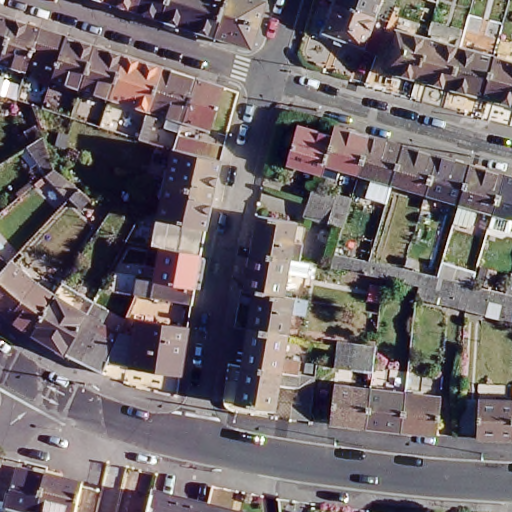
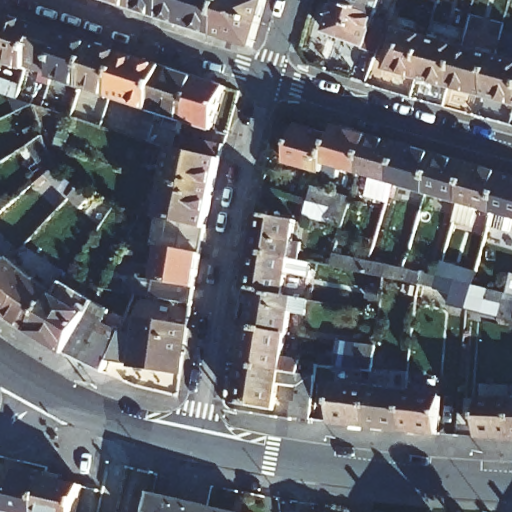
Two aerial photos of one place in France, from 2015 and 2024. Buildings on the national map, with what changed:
unchanged [(145,5),(128,0),(147,0),(145,5)]
unchanged [(147,0),(175,0),(170,14),(145,5),(147,0)]
unchanged [(175,0),(234,0),(223,31),(170,14),(175,0)]
unchanged [(234,0),(275,0),(262,44),(223,31),(234,0)]
unchanged [(375,6),(370,21),(384,26),(376,46),(362,40),(362,37),(325,23),(333,0),(358,0),(375,6)]
unchanged [(375,6),(358,0),(378,0),(375,6)]
unchanged [(0,47),(0,4),(15,9),(2,48),(0,47)]
unchanged [(27,59),(26,61),(0,52),(2,48),(15,9),(41,17),(27,59)]
unchanged [(50,75),(38,71),(41,63),(27,59),(41,17),(67,26),(50,75)]
unchanged [(380,60),(391,20),(422,28),(411,69),(380,60)]
unchanged [(82,79),(63,72),(60,81),(50,77),(50,75),(67,26),(96,35),(82,79)]
unchanged [(422,28),(455,37),(445,77),(411,69),(422,28)]
unchanged [(110,88),(82,79),(96,35),(125,45),(110,88)]
unchanged [(455,37),(489,46),(478,86),(445,77),(455,37)]
unchanged [(148,100),(110,88),(125,45),(162,57),(148,100)]
unchanged [(489,46),(512,53),(512,95),(478,86),(489,46)]
unchanged [(138,130),(148,100),(162,57),(196,69),(182,111),(179,122),(165,117),(168,107),(161,105),(160,110),(155,109),(146,132),(138,130)]
unchanged [(225,79),(211,121),(182,111),(196,69),(225,79)]
unchanged [(286,154),(297,117),(332,127),(322,164),(286,154)]
unchanged [(368,127),(357,165),(340,159),(336,169),(322,164),(332,127),(335,117),(368,127)]
unchanged [(157,208),(161,189),(160,188),(166,159),(168,160),(173,141),(177,127),(225,138),(221,152),(205,220),(157,208)]
unchanged [(368,127),(402,137),(391,175),(386,193),(366,187),(372,169),(357,165),(368,127)]
unchanged [(87,209),(75,199),(75,200),(51,177),(52,176),(33,147),(49,137),(55,155),(60,170),(84,190),(96,199),(87,209)]
unchanged [(435,147),(425,184),(391,175),(402,137),(435,147)]
unchanged [(470,157),(460,194),(425,184),(435,147),(470,157)]
unchanged [(503,166),(492,204),(477,199),(471,220),(453,215),(460,194),(470,157),(503,166)]
unchanged [(503,166),(512,169),(512,209),(492,204),(503,166)]
unchanged [(313,202),(317,187),(322,190),(341,195),(355,199),(346,229),(333,224),(309,216),(313,202)]
unchanged [(258,205),(296,212),(292,231),(301,234),(298,251),(285,250),(251,244),(258,205)]
unchanged [(205,220),(200,247),(160,239),(152,237),(157,208),(205,220)]
unchanged [(192,296),(136,286),(139,270),(154,273),(160,239),(200,247),(192,296)]
unchanged [(285,250),(298,251),(299,252),(310,254),(308,268),(287,265),(283,288),(255,283),(247,281),(245,281),(251,244),(285,250)]
unchanged [(7,255),(30,275),(50,291),(25,329),(2,311),(0,309),(0,263),(2,260),(7,255)]
unchanged [(504,320),(470,311),(420,299),(423,287),(405,282),(389,279),(382,277),(371,275),(339,268),(336,267),(338,255),(373,262),(408,270),(443,279),(460,283),(477,287),(493,291),(508,295),(512,284),(512,322),(504,320)]
unchanged [(0,263),(0,258),(2,260),(0,263)]
unchanged [(50,291),(59,279),(90,297),(60,350),(25,329),(50,291)]
unchanged [(302,305),(290,302),(286,326),(285,326),(249,320),(255,283),(283,288),(290,289),(305,291),(302,305)]
unchanged [(90,297),(102,305),(90,328),(106,335),(110,325),(115,328),(103,357),(98,369),(60,350),(90,297)]
unchanged [(176,372),(127,365),(127,362),(103,357),(115,328),(131,330),(134,315),(183,322),(176,372)]
unchanged [(285,326),(286,326),(282,350),(300,353),(298,367),(264,361),(242,358),(249,320),(285,326)]
unchanged [(362,371),(358,370),(340,368),(342,344),(351,345),(361,346),(380,348),(377,373),(374,372),(362,371)]
unchanged [(291,408),(292,392),(297,393),(298,381),(278,377),(273,402),(236,395),(242,358),(264,361),(298,367),(300,367),(315,370),(310,411),(291,408)]
unchanged [(366,417),(330,413),(333,377),(370,380),(366,417)]
unchanged [(401,421),(366,417),(370,380),(405,385),(401,421)]
unchanged [(441,388),(437,425),(401,421),(405,385),(441,388)]
unchanged [(476,428),(478,390),(512,392),(512,430),(476,428)]
unchanged [(31,512),(3,512),(5,502),(0,501),(0,493),(5,494),(13,461),(42,468),(32,510),(31,512)]
unchanged [(70,512),(41,512),(32,510),(42,468),(79,477),(70,512)]
unchanged [(150,485),(207,498),(253,509),(252,512),(143,512),(145,505),(150,485)]
unchanged [(328,512),(312,512),(315,506),(328,512)]
unchanged [(118,512),(112,512),(112,510),(118,512)]

